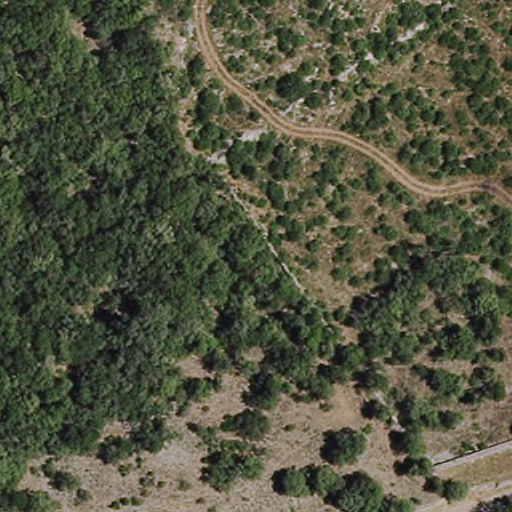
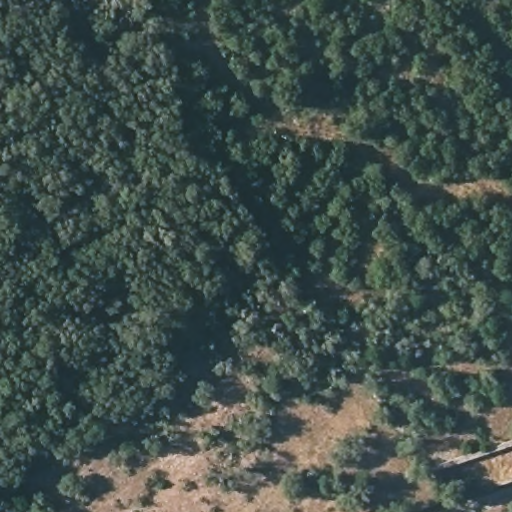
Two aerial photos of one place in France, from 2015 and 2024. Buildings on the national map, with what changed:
[]

